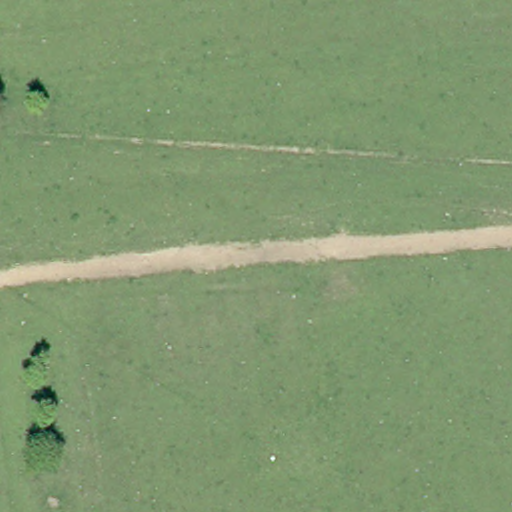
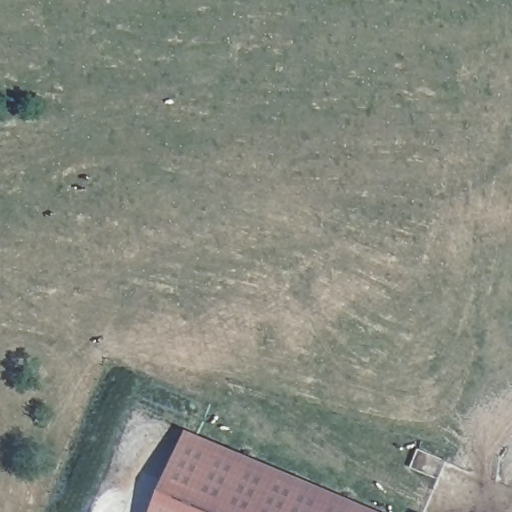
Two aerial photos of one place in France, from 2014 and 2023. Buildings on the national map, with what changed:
new [(384,512),(156,512),(190,429),(384,512)]

